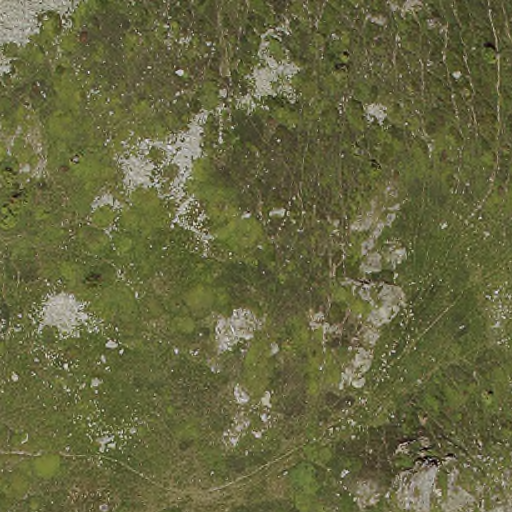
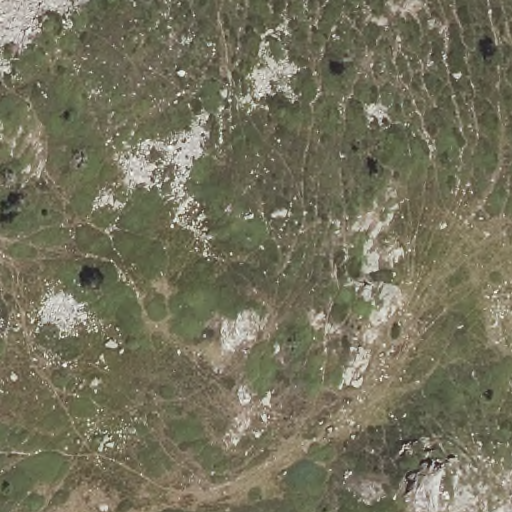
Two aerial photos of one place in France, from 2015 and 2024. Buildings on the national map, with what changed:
[]

